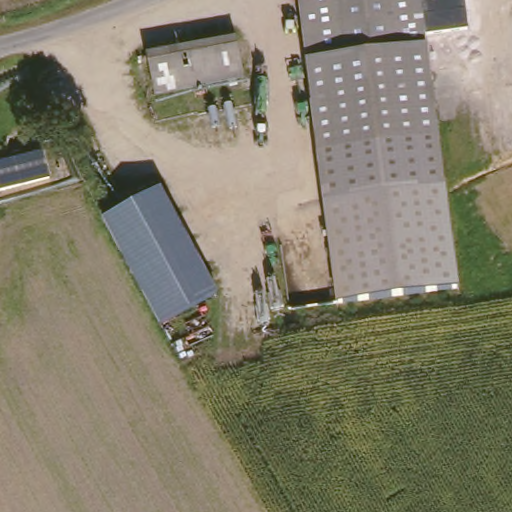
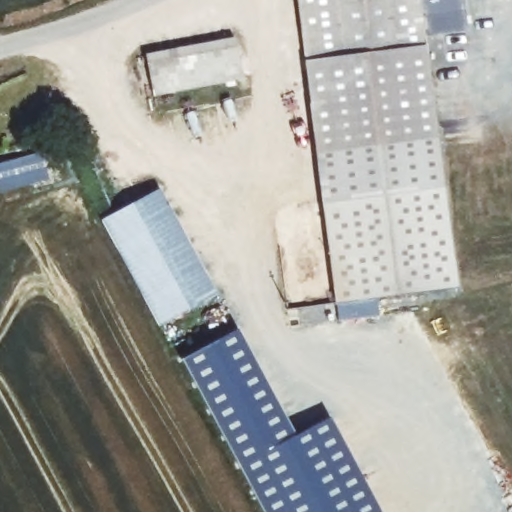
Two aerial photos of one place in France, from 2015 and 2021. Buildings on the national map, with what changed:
unchanged [(297,0),(418,0),(423,36),(426,61),(306,66),(297,0)]
unchanged [(418,0),(464,0),(468,29),(423,36),(418,0)]
unchanged [(235,41),(241,75),(151,94),(145,59),(235,41)]
unchanged [(426,61),(445,200),(457,283),(338,300),(330,243),(313,131),(306,66),(426,61)]
unchanged [(43,151),(50,180),(0,193),(0,162),(43,151)]
unchanged [(153,189),(211,295),(158,324),(155,320),(153,321),(99,223),(98,222),(97,219),(153,189)]
new [(330,416),(382,512),(263,512),(181,359),(237,329),(295,434),(330,416)]

